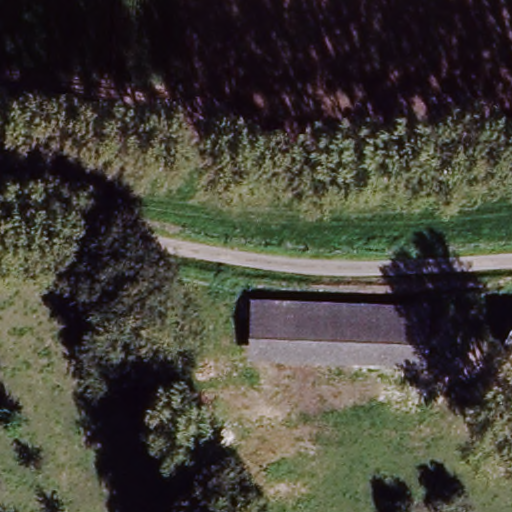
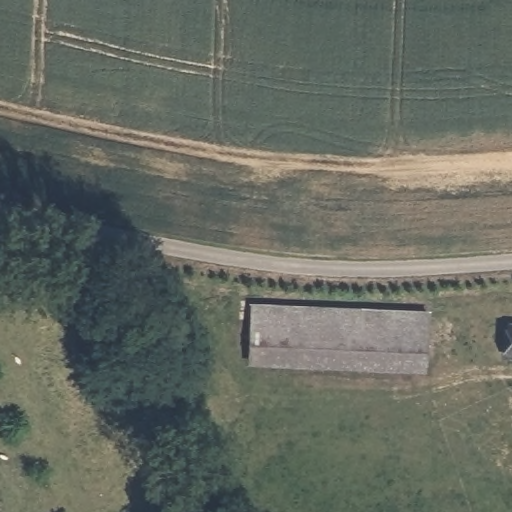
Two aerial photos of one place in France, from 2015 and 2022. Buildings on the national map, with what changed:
unchanged [(248,359),(250,299),(425,304),(427,364),(248,359)]

